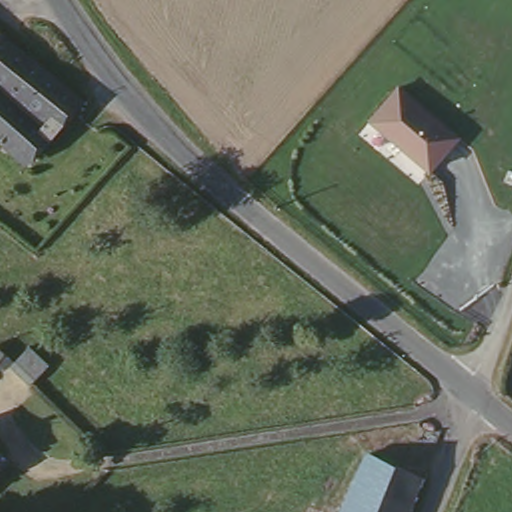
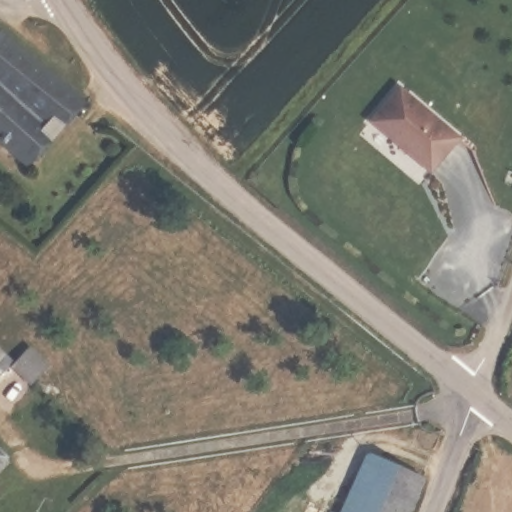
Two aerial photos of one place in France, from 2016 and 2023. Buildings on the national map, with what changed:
unchanged [(0,34),(4,30),(93,96),(36,172),(0,140),(0,34)]
unchanged [(429,173),(367,120),(399,84),(462,136),(429,173)]
unchanged [(49,364),(30,384),(10,365),(29,346),(49,364)]
unchanged [(3,369),(0,367),(0,348),(11,360),(3,369)]
unchanged [(0,465),(0,446),(9,455),(0,465)]
unchanged [(345,512),(374,447),(429,472),(413,512),(345,512)]

